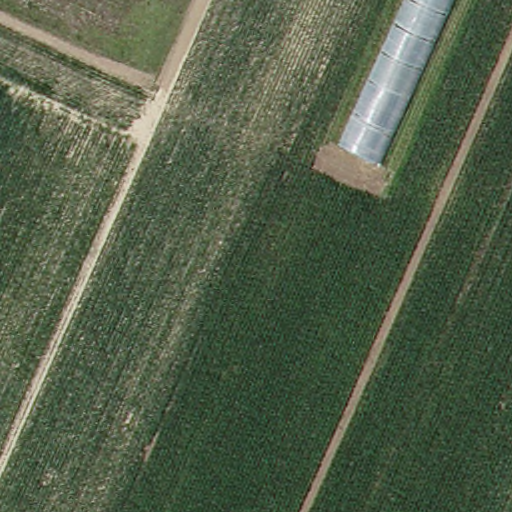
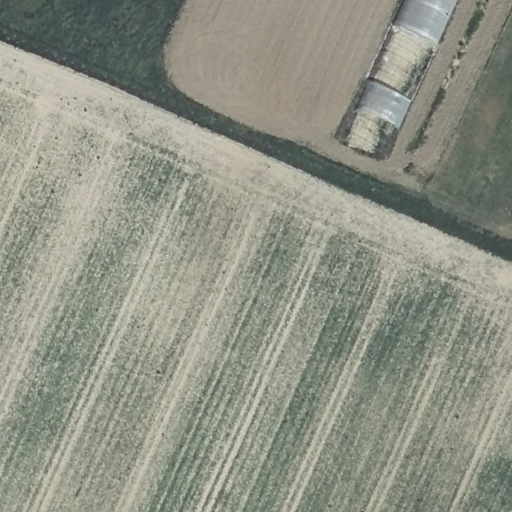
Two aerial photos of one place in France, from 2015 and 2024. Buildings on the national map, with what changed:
unchanged [(338,147),(404,0),(459,0),(384,165),(338,147)]

